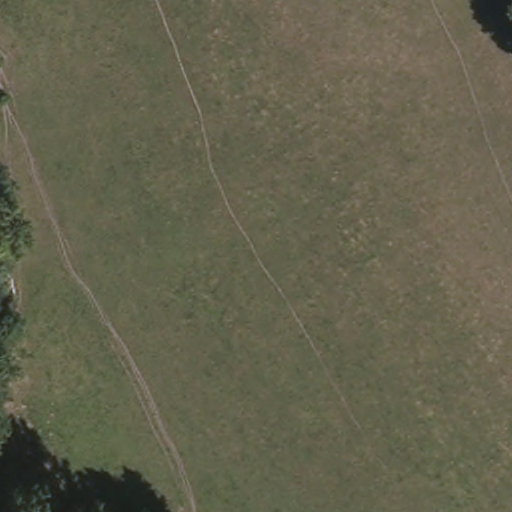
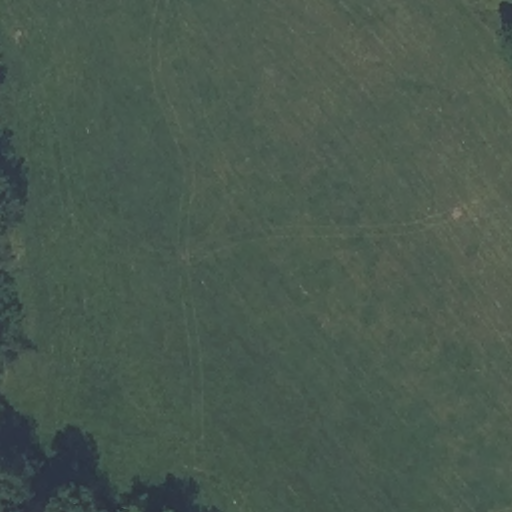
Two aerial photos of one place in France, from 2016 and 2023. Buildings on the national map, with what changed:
[]

